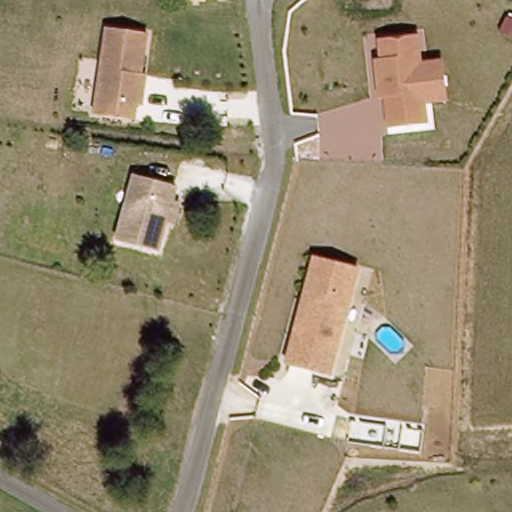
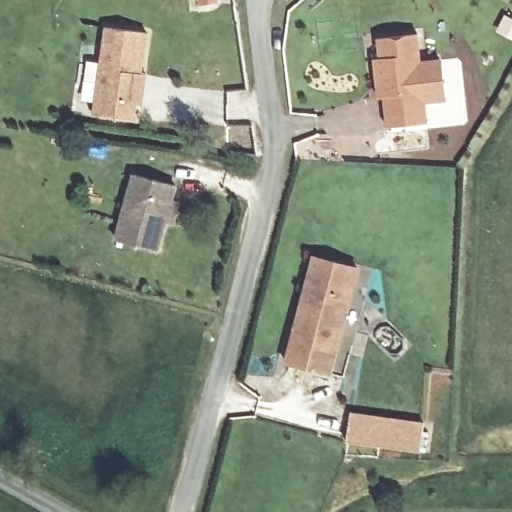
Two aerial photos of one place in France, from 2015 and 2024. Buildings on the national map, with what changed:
unchanged [(198,1),(198,0),(216,0),(230,0),(230,4),(216,2),(198,1)]
unchanged [(145,82),(142,100),(137,100),(135,115),(93,109),(107,21),(149,28),(142,69),(147,70),(145,82)]
unchanged [(418,32),(430,121),(393,129),(390,91),(380,91),(376,70),(383,68),(378,37),(418,32)]
unchanged [(442,59),(447,101),(427,103),(422,61),(442,59)]
unchanged [(183,199),(176,221),(170,220),(162,248),(120,236),(139,170),(181,183),(177,197),(183,199)]
unchanged [(287,358),(295,330),(286,328),(296,291),(305,293),(316,252),(360,265),(352,293),(342,328),(331,370),(287,358)]
new [(425,422),(421,451),(346,441),(351,411),(425,422)]

